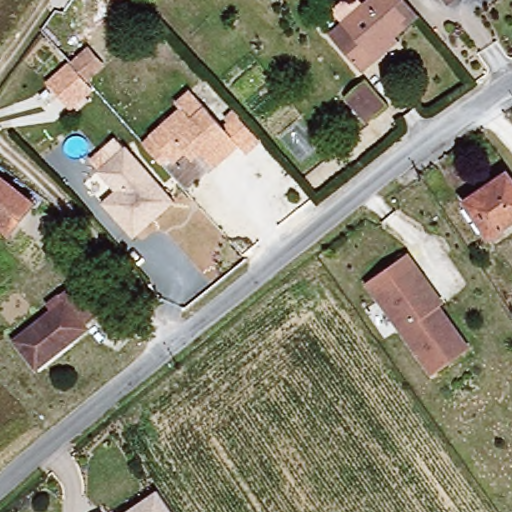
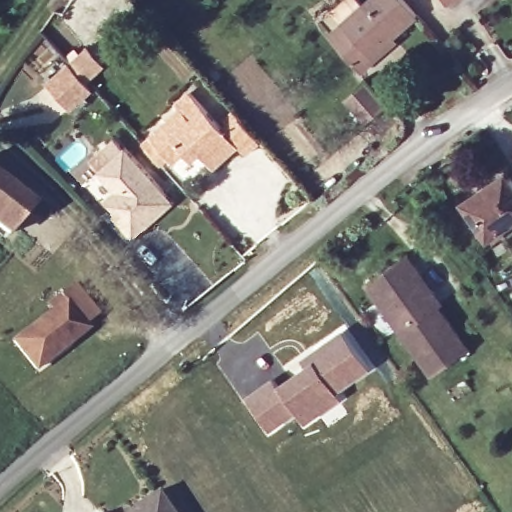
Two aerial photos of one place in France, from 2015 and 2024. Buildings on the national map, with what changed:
unchanged [(361,75),(329,41),(370,0),(402,0),(415,14),(392,37),(398,44),(376,63),(361,75)]
unchanged [(443,0),(451,0),(445,4),(443,0)]
unchanged [(85,73),(69,56),(83,45),(99,62),(85,73)]
unchanged [(364,84),(384,105),(373,115),(366,122),(346,100),(353,94),(364,84)]
unchanged [(159,147),(151,139),(179,113),(175,107),(189,94),(222,129),(234,117),(256,141),(244,151),(238,145),(213,167),(196,150),(191,157),(186,152),(174,164),(169,158),(161,165),(151,155),(159,147)]
unchanged [(124,149),(141,170),(114,195),(100,177),(97,173),(124,149)]
unchanged [(134,243),(125,234),(100,207),(114,195),(141,170),(168,197),(175,204),(134,243)]
unchanged [(464,209),(507,180),(512,187),(512,228),(490,244),(464,209)]
unchanged [(15,237),(0,226),(0,184),(35,210),(15,237)]
unchanged [(472,345),(432,376),(363,285),(403,255),(472,345)]
unchanged [(88,282),(108,305),(94,316),(74,294),(88,282)]
unchanged [(6,350),(43,318),(38,311),(50,301),(65,289),(94,322),(80,335),(83,338),(67,352),(33,381),(28,376),(6,350)]
new [(304,364),(299,357),(341,330),(371,369),(339,392),(344,397),(306,425),(298,415),(278,383),(304,364)]
new [(273,376),(278,383),(298,415),(269,434),(243,397),(273,376)]
unchanged [(141,510),(143,511),(159,500),(168,512),(137,512),(141,510)]

